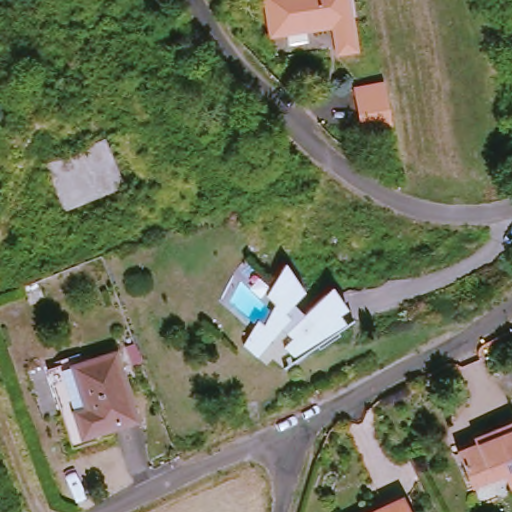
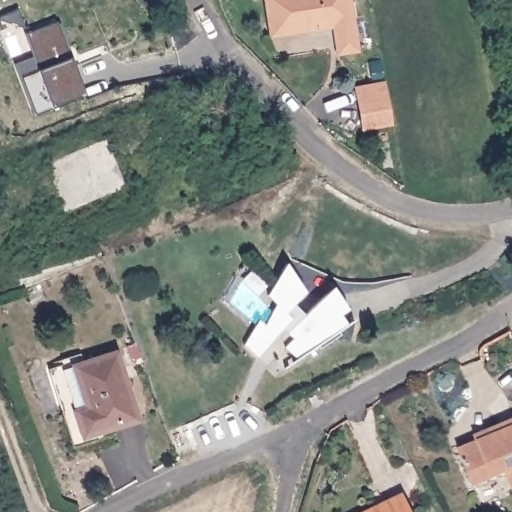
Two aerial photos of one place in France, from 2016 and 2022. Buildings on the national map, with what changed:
unchanged [(269,0),(349,0),(357,55),(339,57),(335,30),(272,40),(266,0),(269,0)]
new [(23,78),(17,64),(34,57),(26,34),(58,23),(72,56),(70,58),(86,95),(54,108),(37,114),(23,78)]
unchanged [(386,83),(393,123),(363,128),(356,89),(386,83)]
unchanged [(310,319),(331,299),(349,324),(353,330),(343,337),(345,340),(325,353),(323,351),(303,364),(290,352),(298,344),(287,334),(263,362),(249,350),(264,325),(270,330),(276,316),(280,309),(271,300),(277,291),(291,268),(311,296),(299,309),(310,319)]
unchanged [(68,365),(70,369),(78,367),(88,363),(121,352),(143,420),(102,433),(100,433),(102,440),(78,448),(53,370),(68,365)]
unchanged [(477,492),(464,457),(484,448),(481,443),(512,431),(512,484),(510,479),(477,492)]
unchanged [(375,512),(403,498),(409,512),(375,512)]

